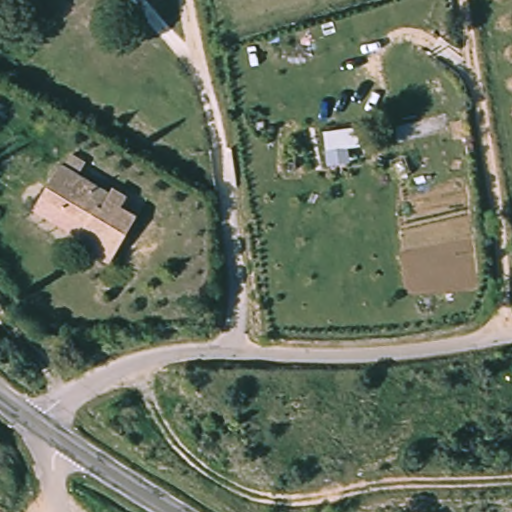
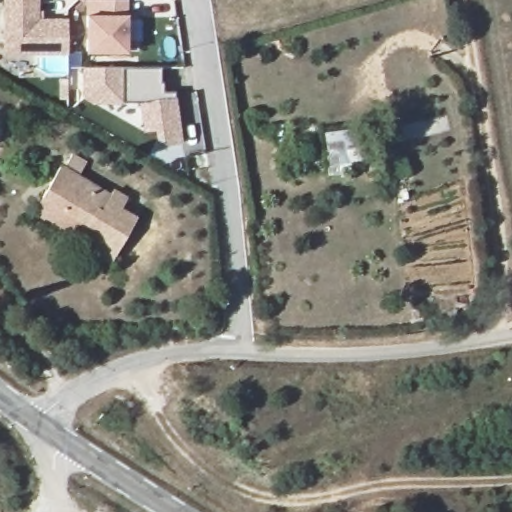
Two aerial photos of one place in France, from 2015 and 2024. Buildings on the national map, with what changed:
new [(67,55),(2,54),(2,0),(39,0),(40,17),(67,18),(67,55)]
new [(128,13),(127,52),(85,52),(85,14),(85,0),(128,0),(128,13)]
demolished [(5,38),(13,56),(0,61),(0,40),(5,38)]
new [(122,67),(160,68),(160,81),(162,81),(162,91),(175,92),(175,97),(181,142),(166,144),(155,138),(154,129),(142,131),(139,101),(120,100),(121,103),(92,104),(82,97),(81,67),(122,67)]
unchanged [(45,193),(65,160),(70,163),(80,150),(91,157),(86,171),(129,196),(122,209),(137,219),(110,260),(73,241),(80,231),(37,205),(45,193)]

